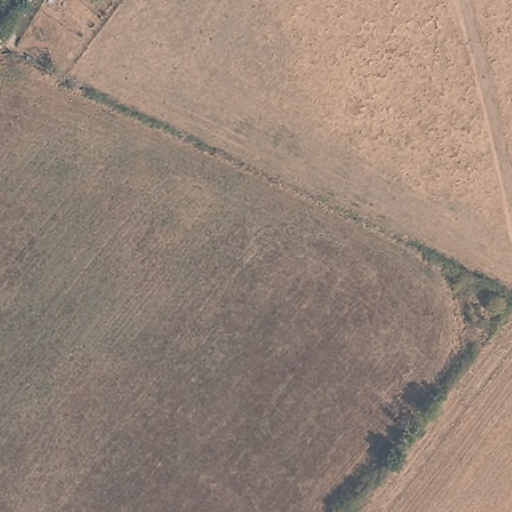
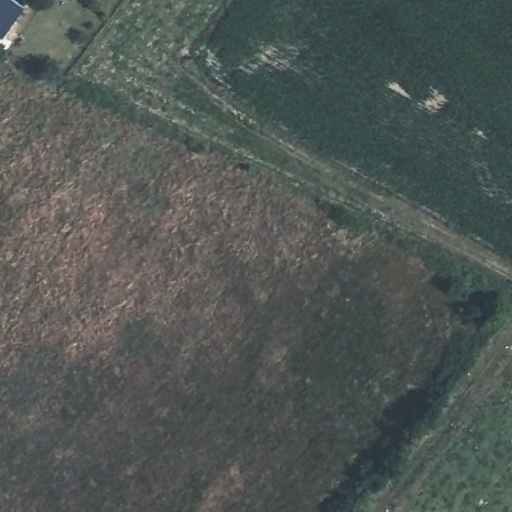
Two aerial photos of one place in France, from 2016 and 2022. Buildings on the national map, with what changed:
new [(23,5),(1,36),(0,35),(0,0),(16,0),(23,5)]

